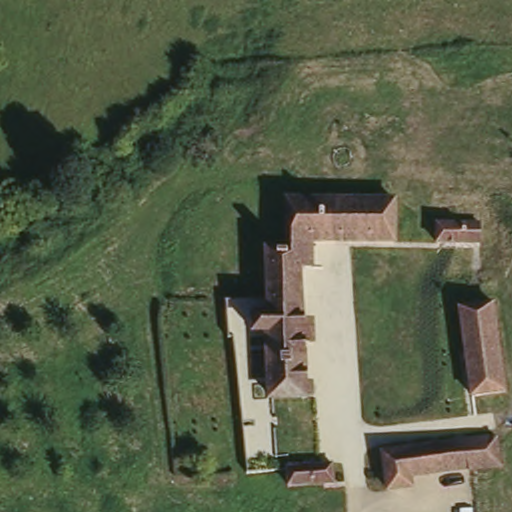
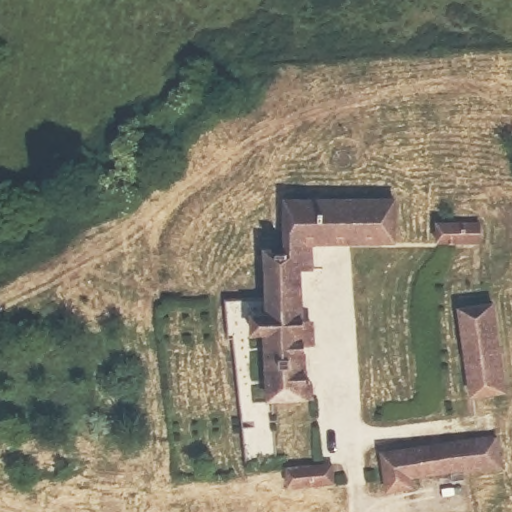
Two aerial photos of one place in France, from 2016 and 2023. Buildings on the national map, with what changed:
unchanged [(283,194),(396,200),(398,244),(317,244),(317,239),(317,231),(311,231),(311,224),(283,224),(283,194)]
unchanged [(436,221),(481,219),(481,244),(437,245),(436,221)]
unchanged [(276,394),(273,329),(238,329),(237,298),(252,298),(252,253),(272,252),(273,224),(311,224),(311,231),(317,231),(317,239),(316,268),(305,268),(307,322),(319,321),(320,340),(309,340),(312,394),(276,394)]
unchanged [(495,306),(505,393),(473,397),(464,309),(495,306)]
unchanged [(499,471),(406,480),(407,491),(384,494),(380,453),(496,439),(499,471)]
unchanged [(276,490),(276,477),(289,476),(288,464),(307,462),(319,461),(320,488),(276,490)]

